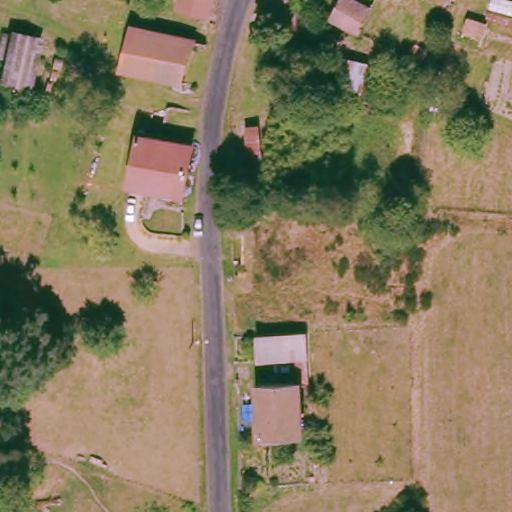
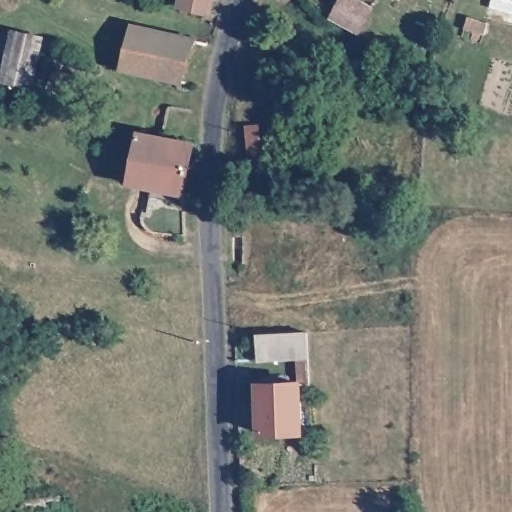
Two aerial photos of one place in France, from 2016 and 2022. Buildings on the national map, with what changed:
unchanged [(184,11),(186,0),(217,0),(214,18),(184,11)]
unchanged [(334,20),(343,0),(352,0),(374,11),(365,32),(334,20)]
unchanged [(491,0),(512,0),(512,7),(491,0)]
unchanged [(187,86),(118,66),(129,22),(152,28),(199,42),(187,86)]
unchanged [(40,38),(35,87),(6,84),(9,34),(40,38)]
unchanged [(248,122),(264,123),(264,172),(248,169),(248,122)]
unchanged [(185,195),(131,185),(142,136),(193,145),(185,195)]
unchanged [(256,361),(254,335),(310,334),(312,360),(256,361)]
unchanged [(298,381),(300,430),(261,433),(258,383),(298,381)]

